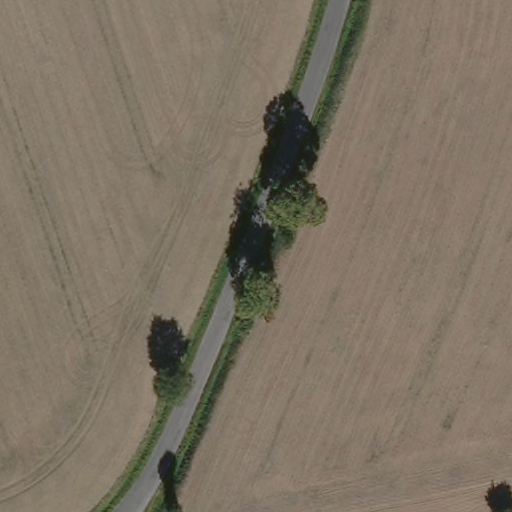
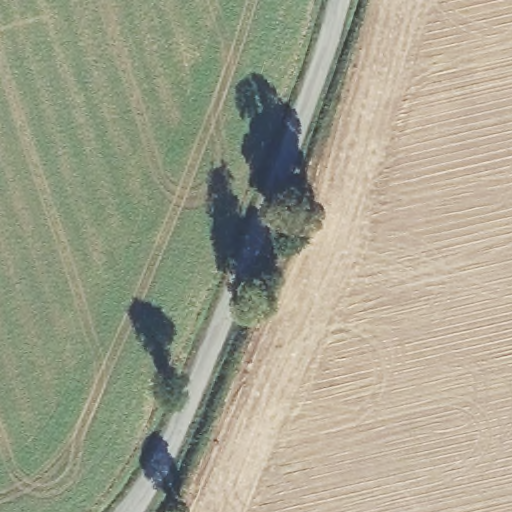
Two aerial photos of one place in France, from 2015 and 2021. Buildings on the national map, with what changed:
[]

